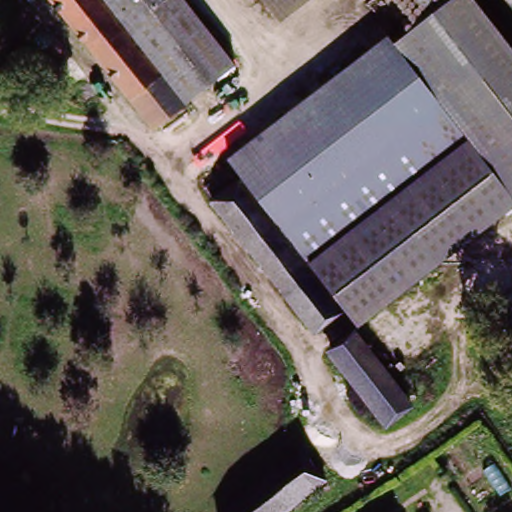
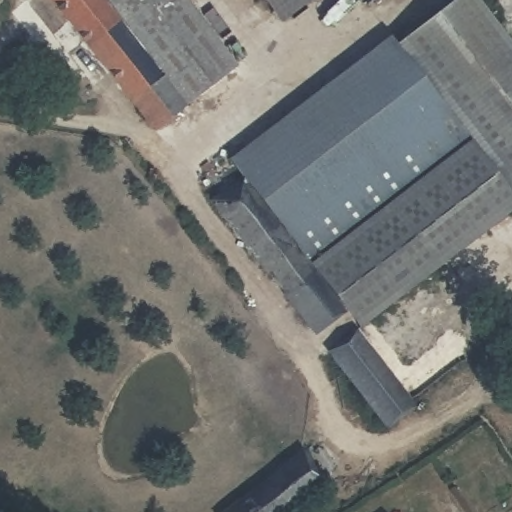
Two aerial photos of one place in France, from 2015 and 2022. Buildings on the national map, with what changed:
unchanged [(53,0),(183,0),(235,70),(220,82),(153,132),(53,0)]
unchanged [(262,17),(250,0),(260,0),(269,12),(262,17)]
unchanged [(271,15),(269,12),(260,0),(291,0),(275,12),(271,15)]
unchanged [(475,0),(512,48),(512,214),(364,329),(331,290),(346,280),(329,259),(389,208),(405,225),(425,209),(413,192),(473,146),(395,42),(461,0),(475,0)]
unchanged [(229,166),(224,160),(389,35),(395,42),(473,146),(413,192),(425,209),(405,225),(389,208),(329,259),(346,280),(331,290),(229,166)]
unchanged [(296,320),(195,191),(229,166),(331,290),(296,320)]
unchanged [(404,392),(377,413),(328,346),(354,326),(404,392)]
unchanged [(229,505),(304,450),(326,480),(281,512),(218,512),(229,505)]

